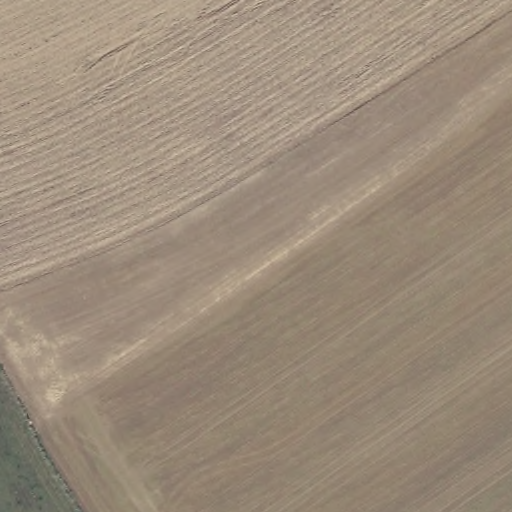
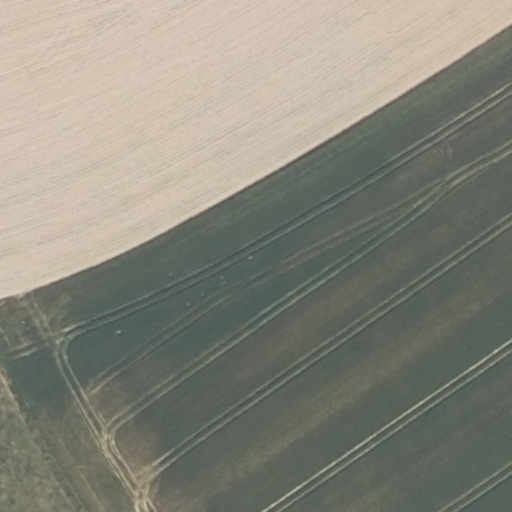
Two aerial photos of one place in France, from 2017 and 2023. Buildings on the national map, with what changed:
[]

